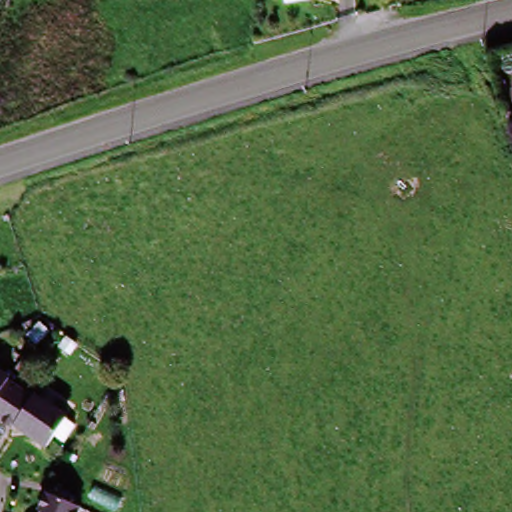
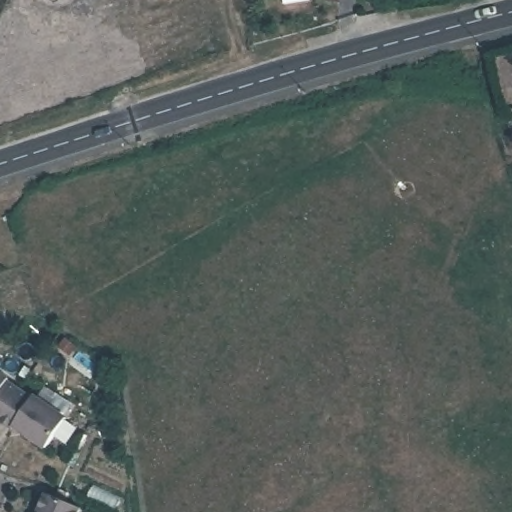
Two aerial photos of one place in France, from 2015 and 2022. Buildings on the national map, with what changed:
unchanged [(280,4),(279,0),(305,0),(280,4)]
unchanged [(0,417),(0,374),(8,379),(8,382),(18,389),(0,417)]
unchanged [(28,398),(33,396),(65,420),(45,449),(25,436),(27,432),(15,426),(12,428),(0,421),(0,417),(18,389),(28,398)]
unchanged [(45,498),(50,500),(75,512),(38,512),(45,498)]

